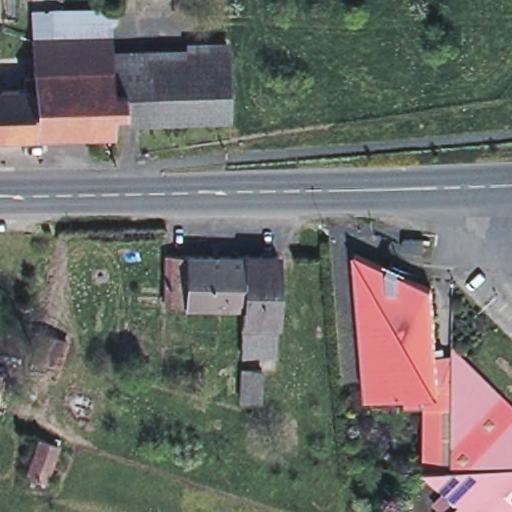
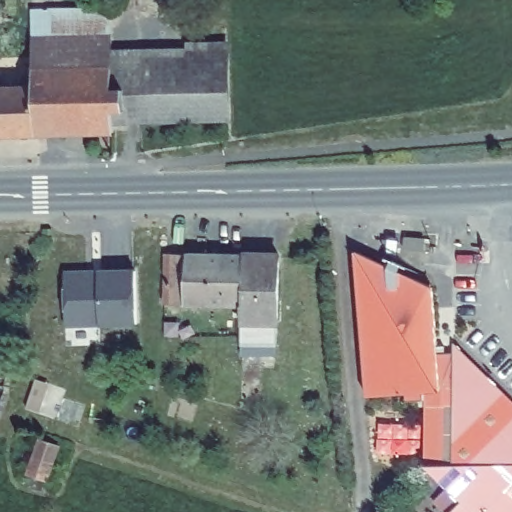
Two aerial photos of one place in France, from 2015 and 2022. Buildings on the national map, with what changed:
unchanged [(35,12),(108,9),(108,31),(36,34),(35,12)]
unchanged [(31,57),(30,34),(36,34),(108,31),(109,41),(111,117),(111,129),(36,131),(35,84),(22,84),(22,57),(31,57)]
unchanged [(225,39),(226,115),(111,117),(109,41),(225,39)]
unchanged [(22,84),(35,84),(36,131),(0,131),(0,85),(22,84)]
unchanged [(423,234),(425,238),(425,244),(405,246),(403,236),(423,234)]
unchanged [(392,267),(395,275),(404,272),(436,288),(444,357),(460,357),(462,407),(435,407),(434,398),(418,400),(417,393),(370,396),(358,251),(392,267)]
unchanged [(167,306),(169,255),(190,256),(187,306),(167,306)]
unchanged [(247,257),(246,307),(245,307),(187,306),(190,256),(247,257)]
unchanged [(246,307),(247,257),(280,257),(279,347),(244,347),(245,307),(246,307)]
new [(138,324),(100,326),(65,327),(65,272),(97,269),(135,268),(138,324)]
unchanged [(462,407),(460,357),(458,345),(512,398),(512,512),(454,512),(467,502),(430,464),(437,464),(437,452),(435,407),(462,407)]
unchanged [(263,370),(263,402),(244,401),(244,370),(263,370)]
unchanged [(62,447),(50,481),(30,472),(41,439),(62,447)]

